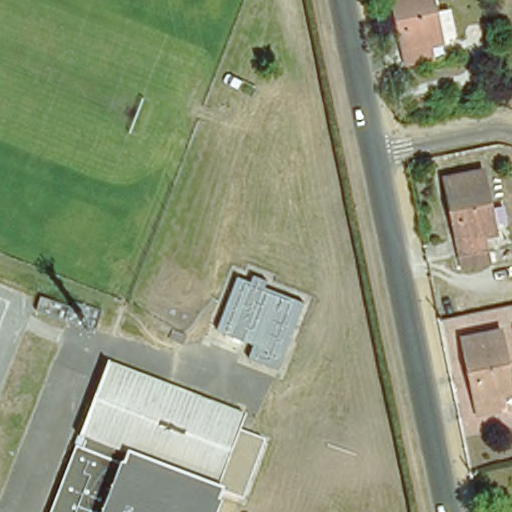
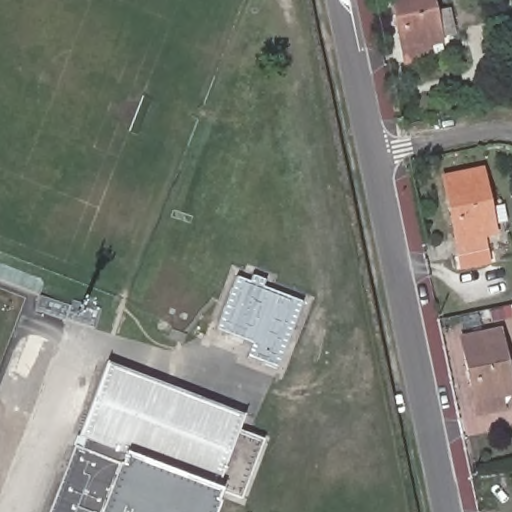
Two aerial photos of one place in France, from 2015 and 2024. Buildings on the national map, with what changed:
unchanged [(427,47),(428,60),(402,66),(388,0),(429,0),(438,44),(427,47)]
unchanged [(441,172),(479,164),(492,225),(480,228),(482,243),(487,256),(461,261),(457,247),(441,172)]
unchanged [(237,277),(253,282),(256,275),(268,279),(267,292),(306,306),(279,370),(251,358),(254,344),(218,329),(237,277)]
unchanged [(74,301),(101,309),(96,328),(69,319),(74,301)]
unchanged [(170,328),(184,334),(180,342),(167,337),(170,328)]
unchanged [(511,396),(498,399),(501,413),(476,418),(460,342),(497,334),(511,396)]
unchanged [(72,470),(75,463),(82,446),(92,450),(97,439),(86,434),(114,362),(210,400),(211,405),(227,481),(224,489),(229,491),(229,492),(221,512),(56,512),(72,470)]
unchanged [(252,417),(227,481),(211,405),(210,400),(252,417)]

